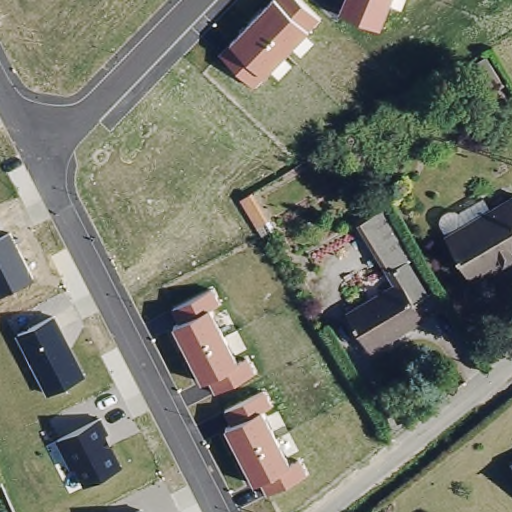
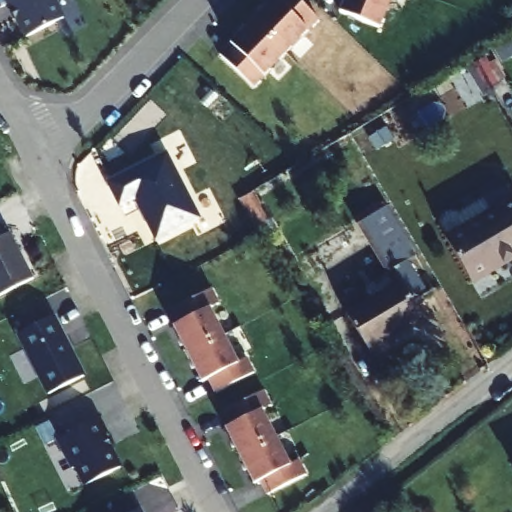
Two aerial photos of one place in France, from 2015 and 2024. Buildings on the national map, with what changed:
new [(63,17),(26,37),(7,0),(54,0),(63,17)]
unchanged [(316,15),(305,26),(306,28),(266,70),(252,83),(221,52),(270,0),(302,0),(316,15)]
unchanged [(380,28),(340,12),(345,0),(391,0),(380,28)]
unchanged [(485,58),(502,85),(487,94),(482,97),(465,70),(471,67),(485,58)]
new [(140,209),(134,197),(119,205),(107,183),(165,153),(198,218),(162,236),(156,240),(140,209)]
unchanged [(250,193),(272,228),(260,236),(238,200),(250,193)]
unchanged [(512,210),(512,267),(471,291),(445,247),(437,234),(438,230),(441,224),(447,221),(453,221),(458,223),(483,208),(491,222),(512,210)]
unchanged [(384,290),(346,228),(375,211),(405,261),(397,266),(417,299),(403,307),(412,322),(392,335),(391,334),(357,354),(336,319),(384,290)]
unchanged [(0,294),(0,235),(10,230),(33,277),(0,294)]
unchanged [(219,303),(211,308),(238,362),(246,358),(253,371),(213,392),(207,380),(201,383),(171,325),(182,319),(175,303),(212,284),(219,303)]
unchanged [(85,374),(47,394),(15,332),(55,312),(85,374)]
unchanged [(272,404),(261,409),(288,463),(298,458),(307,474),(270,494),(261,479),(255,482),(225,423),(231,421),(225,409),(265,388),(272,404)]
unchanged [(108,431),(105,432),(121,465),(83,484),(57,437),(100,415),(108,431)]
unchanged [(132,512),(141,507),(144,512),(132,512)]

